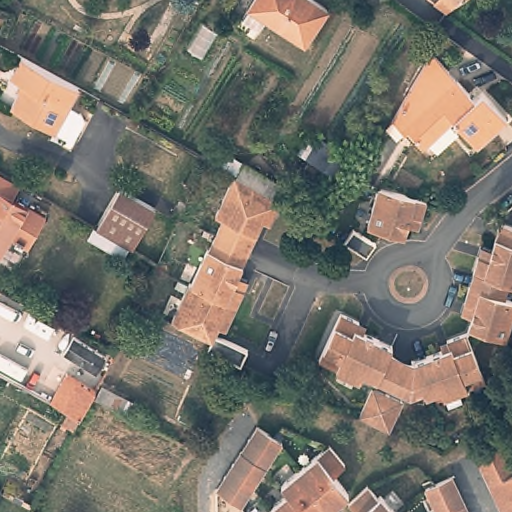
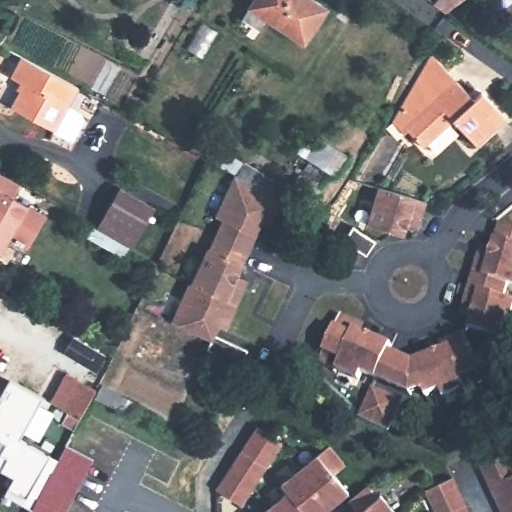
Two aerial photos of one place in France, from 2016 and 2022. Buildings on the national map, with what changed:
unchanged [(310,40),(293,28),(274,16),(267,26),(247,14),(256,0),(326,0),(334,5),(310,40)]
unchanged [(455,5),(449,0),(461,0),(455,5)]
unchanged [(82,117),(71,135),(54,125),(10,101),(23,77),(9,69),(20,49),(78,80),(66,102),(78,108),(82,117)]
unchanged [(483,93),(505,118),(476,145),(454,120),(424,147),(408,129),(404,133),(392,119),(412,86),(432,52),(476,99),(483,93)]
unchanged [(339,143),(327,167),(298,150),(306,133),(316,138),(319,133),(339,143)]
unchanged [(248,149),(289,172),(279,189),(238,166),(248,149)]
unchanged [(29,202),(46,212),(29,242),(11,232),(2,248),(0,247),(0,168),(37,190),(29,202)]
unchanged [(224,215),(217,212),(237,171),(283,196),(277,210),(269,207),(253,243),(218,227),(224,215)]
unchanged [(427,199),(422,214),(412,211),(404,232),(368,220),(379,184),(427,199)]
unchanged [(134,247),(101,227),(124,187),(158,206),(157,207),(134,247)]
unchanged [(481,254),(491,257),(503,222),(512,225),(512,283),(511,282),(475,271),(481,254)]
unchanged [(353,223),(378,236),(371,249),(346,236),(353,223)]
unchanged [(207,248),(208,249),(218,227),(253,243),(238,277),(248,282),(239,300),(193,278),(207,248)]
unchanged [(511,282),(506,296),(512,298),(512,323),(507,338),(469,326),(476,305),(465,301),(475,271),(511,282)]
unchanged [(206,345),(210,336),(171,317),(189,277),(193,278),(239,300),(231,319),(224,317),(217,331),(248,345),(240,361),(239,361),(206,345)]
unchanged [(368,370),(366,376),(325,357),(338,332),(348,311),(366,319),(362,328),(397,344),(393,353),(382,377),(368,370)]
unchanged [(421,373),(416,364),(452,345),(449,340),(467,331),(491,375),(452,396),(448,389),(433,397),(428,387),(421,373)]
unchanged [(417,393),(382,377),(393,353),(414,362),(416,364),(421,373),(428,387),(417,393)]
unchanged [(69,370),(90,381),(85,392),(75,410),(54,398),(69,370)]
new [(24,504),(3,493),(11,476),(0,470),(0,394),(8,379),(41,396),(19,438),(51,454),(24,504)]
unchanged [(379,385),(409,398),(394,430),(364,417),(379,385)]
unchanged [(257,426),(273,436),(282,442),(241,505),(216,489),(257,426)]
unchanged [(503,443),(512,463),(512,500),(499,506),(476,456),(503,443)]
new [(94,457),(65,512),(29,512),(64,446),(94,457)]
unchanged [(328,446),(345,465),(332,474),(347,492),(329,507),(299,470),(328,446)]
unchanged [(299,470),(329,507),(324,512),(303,512),(288,493),(281,485),(297,472),(299,470)]
unchanged [(452,476),(469,512),(435,512),(424,489),(434,484),(452,476)]
unchanged [(380,494),(395,512),(358,512),(348,501),(368,485),(377,496),(380,494)]
unchanged [(288,493),(303,512),(272,512),(269,508),(288,493)]
unchanged [(502,512),(499,506),(512,500),(512,512),(502,512)]
unchanged [(272,512),(265,512),(269,508),(272,512)]

